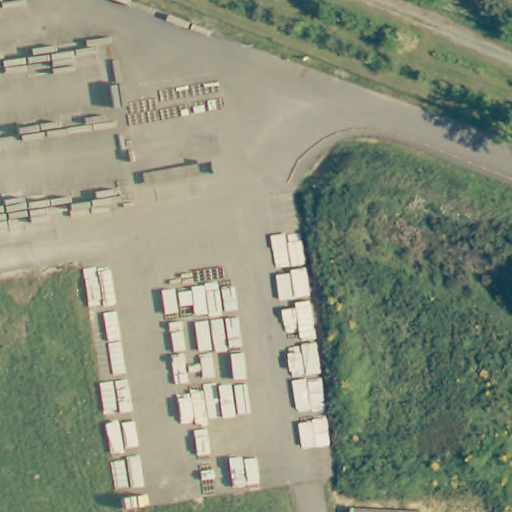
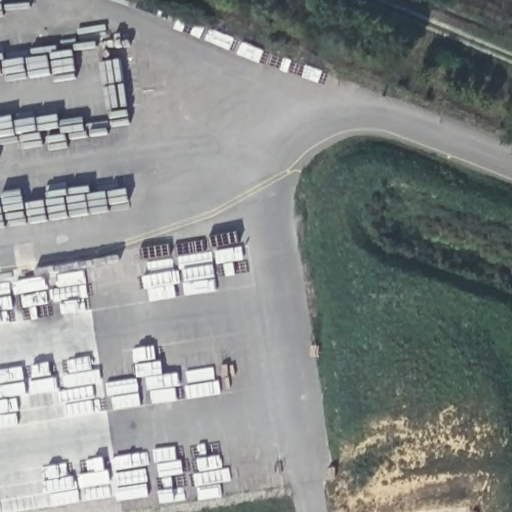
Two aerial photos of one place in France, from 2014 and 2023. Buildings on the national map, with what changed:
[]

